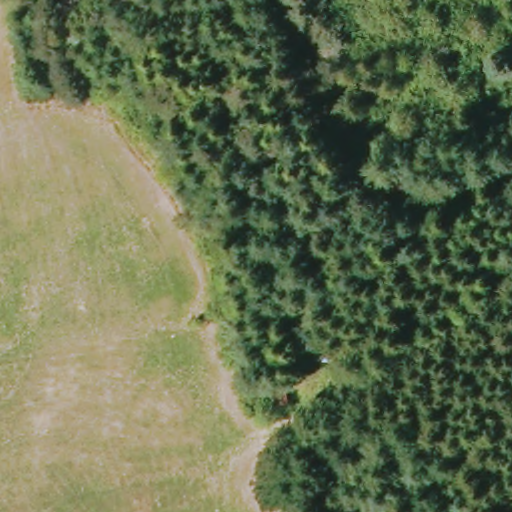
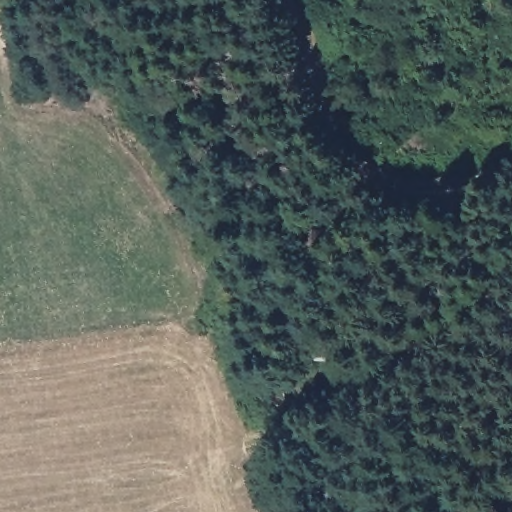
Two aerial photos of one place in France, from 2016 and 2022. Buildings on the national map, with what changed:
unchanged [(245,386),(273,376),(283,404),(257,412),(245,386)]

